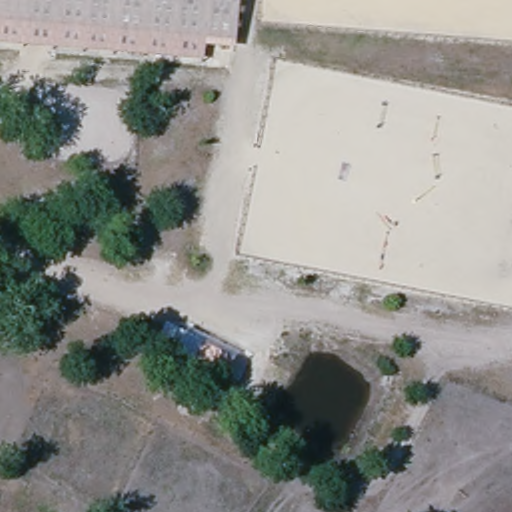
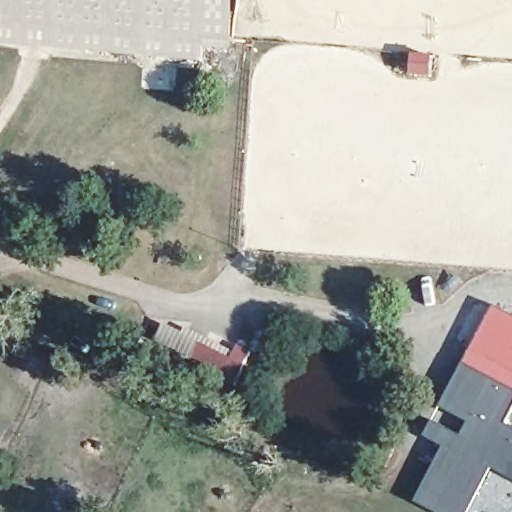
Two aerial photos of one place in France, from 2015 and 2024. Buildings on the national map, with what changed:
unchanged [(0,26),(0,0),(10,0),(7,27),(0,26)]
unchanged [(7,27),(10,0),(238,0),(235,46),(7,27)]
new [(512,390),(465,366),(497,306),(512,314),(512,390)]
new [(187,327),(235,352),(239,345),(253,352),(237,382),(157,340),(166,325),(184,335),(187,327)]
new [(447,447),(427,437),(436,422),(462,437),(469,423),(442,406),(465,366),(512,390),(512,416),(508,425),(512,427),(512,478),(493,468),(471,512),(437,512),(418,501),(447,447)]

